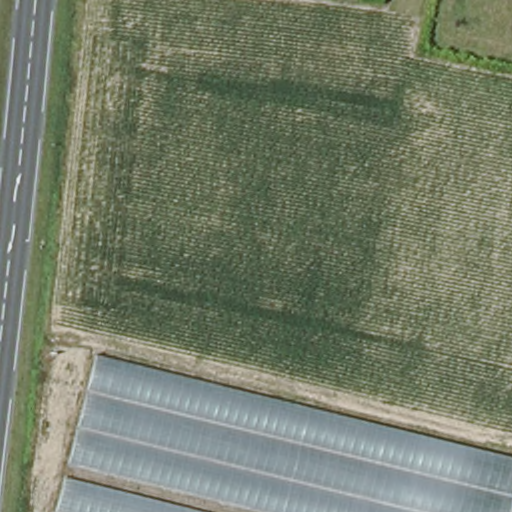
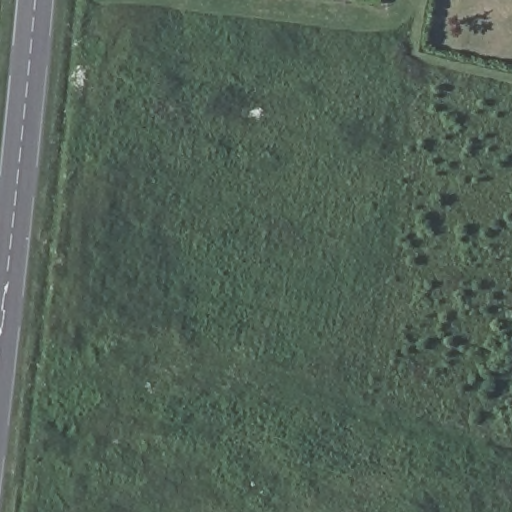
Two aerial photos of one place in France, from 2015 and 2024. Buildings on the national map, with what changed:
demolished [(86,348),(512,450),(512,512),(51,512),(86,348)]

